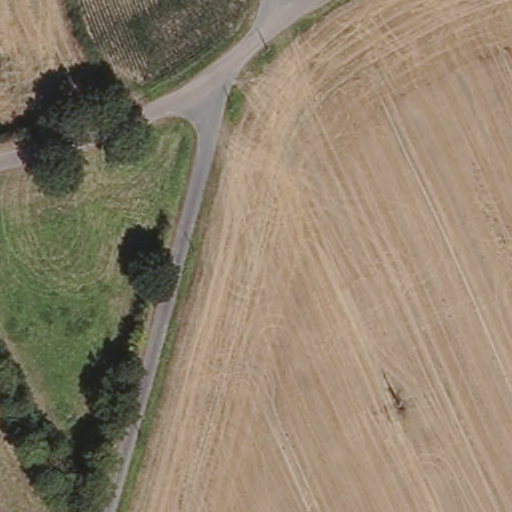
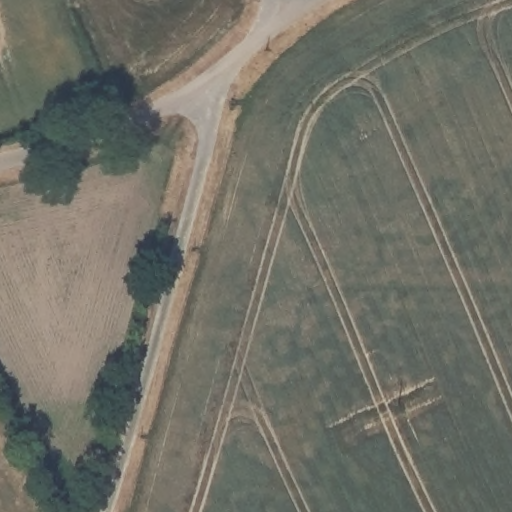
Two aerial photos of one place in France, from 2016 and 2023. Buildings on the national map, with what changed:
unchanged [(237,74),(242,69),(253,82),(241,93),(231,80),(237,74)]

